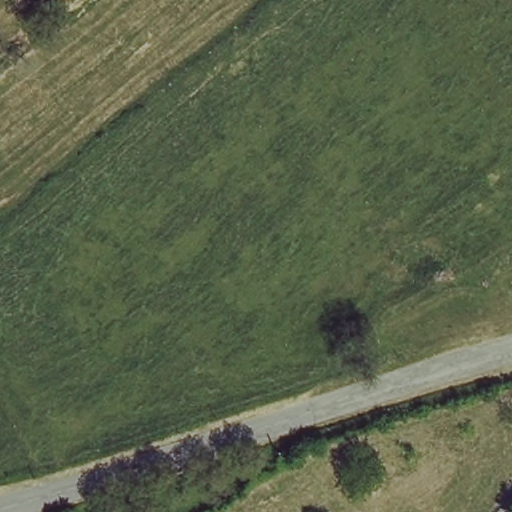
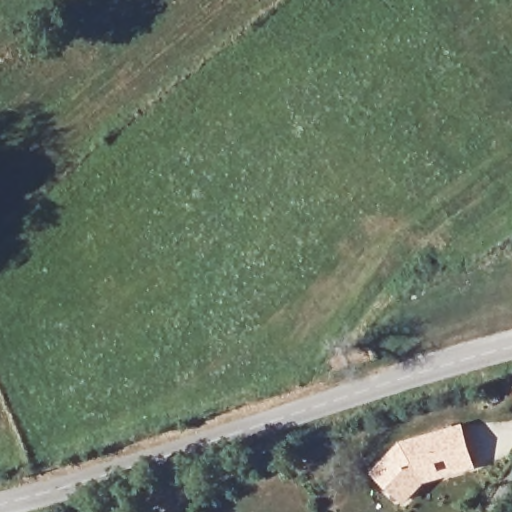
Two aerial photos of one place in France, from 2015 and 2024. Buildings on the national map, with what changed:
new [(377,473),(403,445),(462,427),(474,465),(450,472),(448,468),(442,470),(444,475),(425,480),(405,500),(377,473)]

